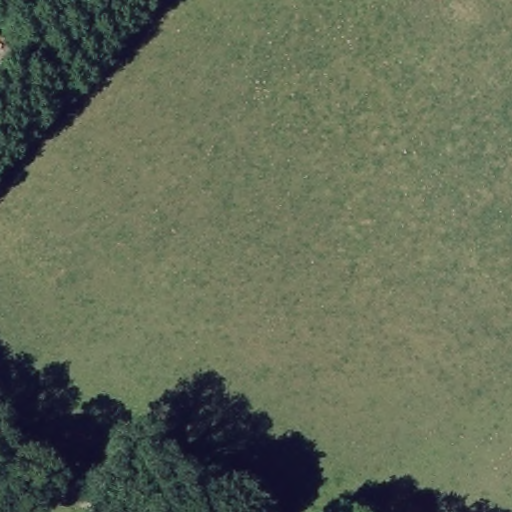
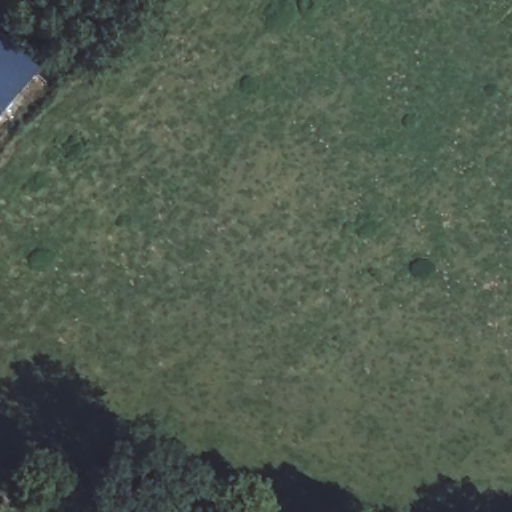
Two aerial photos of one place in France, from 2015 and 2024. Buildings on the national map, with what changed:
new [(36,72),(0,113),(0,40),(36,72)]

